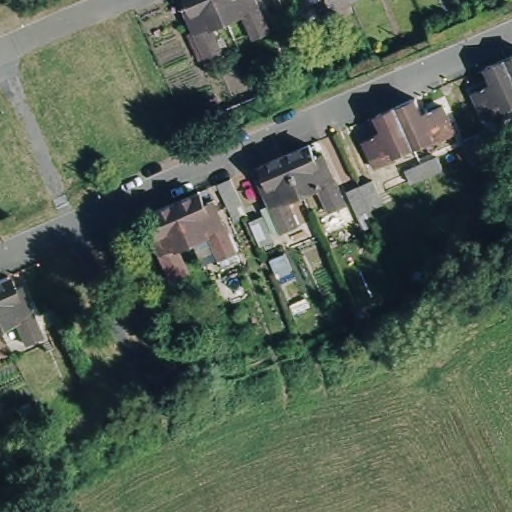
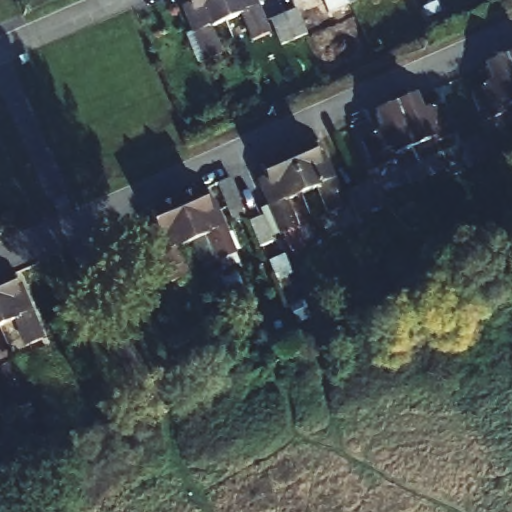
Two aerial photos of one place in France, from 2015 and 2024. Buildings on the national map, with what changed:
unchanged [(206,62),(185,16),(183,11),(190,7),(187,0),(217,0),(227,22),(210,30),(221,56),(206,62)]
unchanged [(242,16),(227,22),(217,0),(253,0),(269,34),(253,41),(242,16)]
unchanged [(361,0),(350,6),(331,14),(326,3),(333,0),(361,0)]
unchanged [(288,15),(302,9),(312,34),(300,40),(288,45),(277,19),(288,15)]
unchanged [(505,55),(512,52),(512,72),(505,56),(505,55)]
unchanged [(506,108),(485,117),(473,90),(486,84),(485,81),(492,77),(485,64),(500,57),(505,55),(505,56),(512,72),(512,100),(504,104),(506,108)]
unchanged [(418,114),(423,112),(425,116),(439,109),(450,136),(430,145),(428,141),(409,149),(393,112),(392,108),(412,100),(418,114)]
unchanged [(394,161),(372,170),(361,142),(375,137),(374,133),(379,131),(373,117),(392,108),(393,112),(409,149),(392,156),(394,161)]
unchanged [(440,147),(453,142),(465,137),(476,162),(464,167),(451,173),(440,147)]
unchanged [(326,210),(315,185),(300,192),(283,152),(283,151),(290,148),(308,141),(314,155),(321,152),(323,157),(343,204),(326,210)]
unchanged [(296,224),(279,231),(259,185),(257,180),(264,176),(258,162),(270,157),(281,152),(283,151),(283,152),(300,192),(285,198),(296,224)]
unchanged [(405,174),(421,167),(437,161),(442,172),(426,180),(411,187),(405,174)]
unchanged [(217,184),(223,182),(230,179),(231,179),(246,214),(233,220),(217,184)]
unchanged [(356,215),(345,191),(360,184),(370,180),(382,204),(371,209),(356,215)]
unchanged [(218,257),(207,232),(191,239),(175,200),(174,198),(200,187),(205,201),(211,199),(214,205),(234,251),(218,257)]
unchanged [(188,271),(171,277),(151,232),(149,226),(157,222),(150,209),(153,207),(167,201),(174,198),(175,200),(191,239),(177,245),(188,271)]
unchanged [(260,214),(271,239),(258,245),(247,220),(260,214)]
unchanged [(17,282),(19,287),(39,334),(22,341),(11,315),(0,319),(0,272),(2,272),(8,286),(17,282)]
unchanged [(178,346),(212,332),(217,345),(183,359),(178,346)]
unchanged [(69,400),(42,412),(37,400),(63,388),(69,400)]

